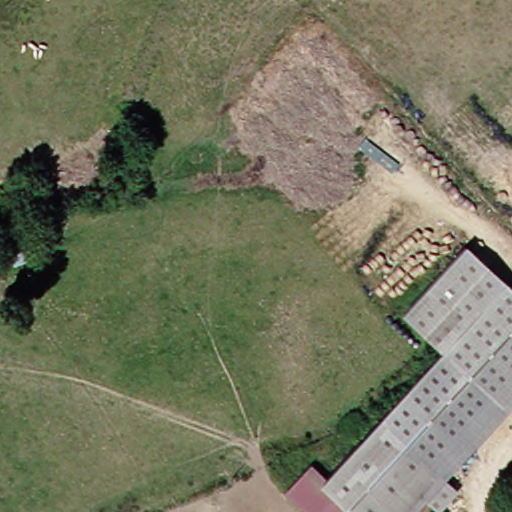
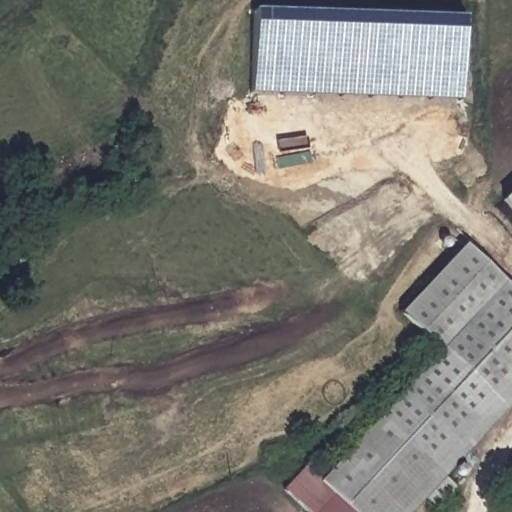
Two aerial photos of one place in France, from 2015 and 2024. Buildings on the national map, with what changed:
new [(463,16),(461,99),(251,94),(253,10),(463,16)]
new [(512,192),(512,213),(501,202),(512,192)]
unchanged [(512,402),(402,512),(309,512),(283,485),(306,459),(321,474),(443,350),(404,310),(468,247),(512,291),(512,402)]

